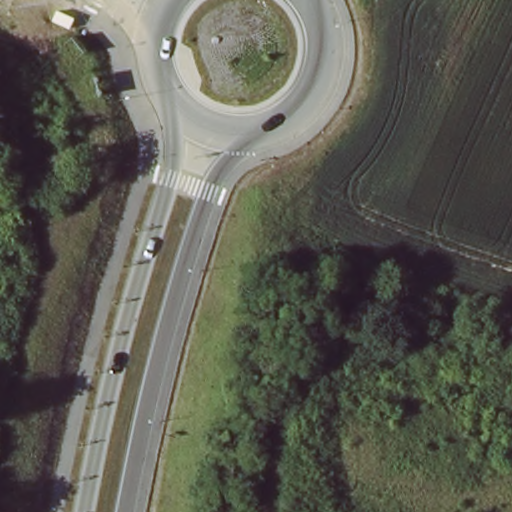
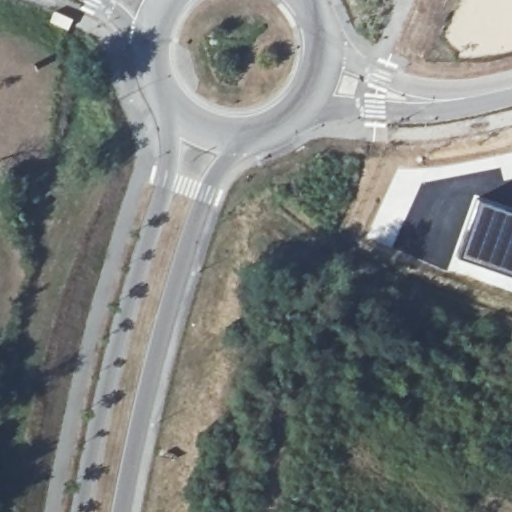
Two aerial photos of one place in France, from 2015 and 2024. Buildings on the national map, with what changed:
new [(475,196),(512,208),(512,276),(454,255),(475,196)]

